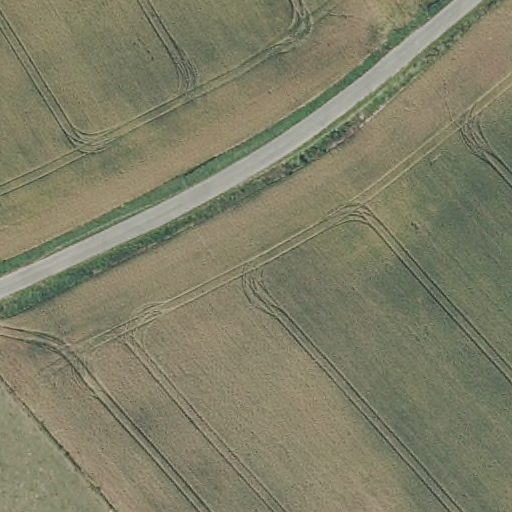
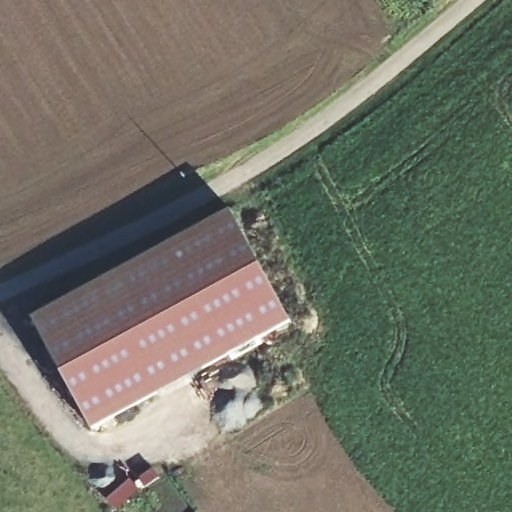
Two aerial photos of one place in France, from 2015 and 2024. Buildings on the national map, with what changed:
new [(289,320),(93,428),(33,317),(229,210),(289,320)]

